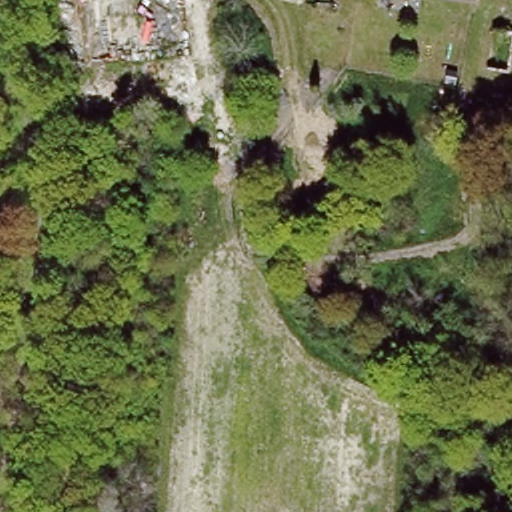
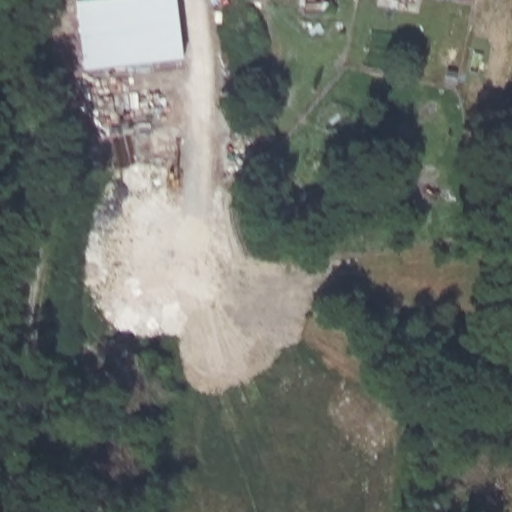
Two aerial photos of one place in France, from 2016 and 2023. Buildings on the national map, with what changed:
new [(77,0),(181,0),(187,57),(86,69),(77,0)]
unchanged [(460,0),(476,0),(475,3),(460,0)]
unchanged [(512,31),(512,53),(511,62),(489,60),(494,28),(512,31)]

